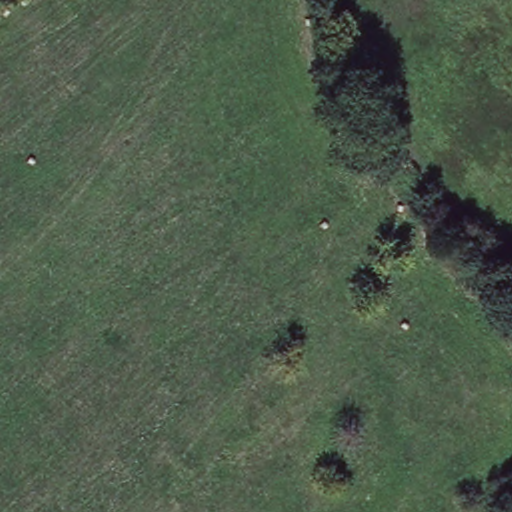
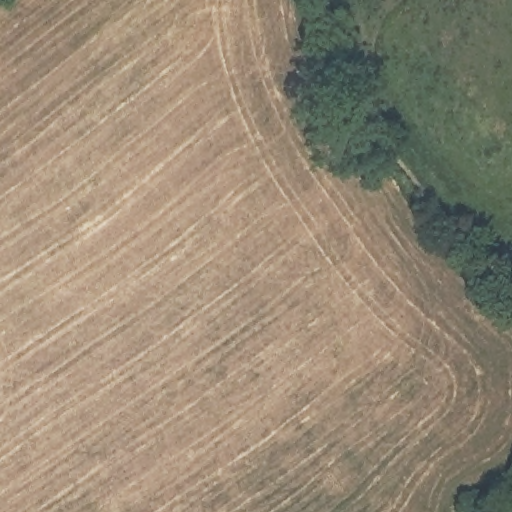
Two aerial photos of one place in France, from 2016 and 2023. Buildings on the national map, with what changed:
[]

